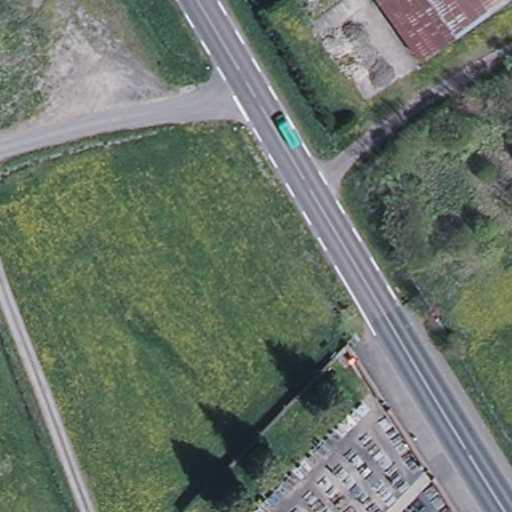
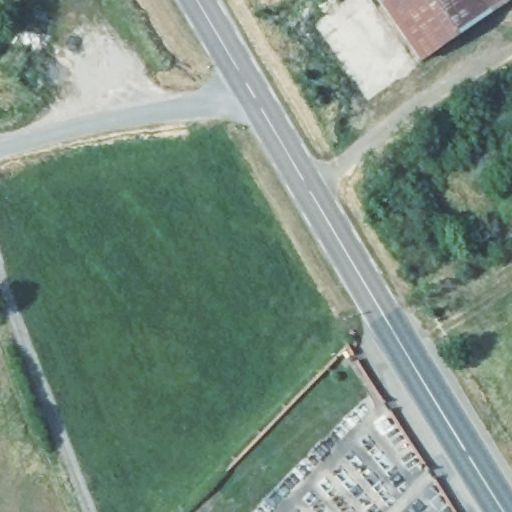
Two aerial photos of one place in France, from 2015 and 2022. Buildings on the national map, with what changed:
unchanged [(378,1),(380,0),(481,0),(492,16),(421,65),(378,1)]
unchanged [(492,16),(481,0),(507,0),(510,4),(492,16)]

